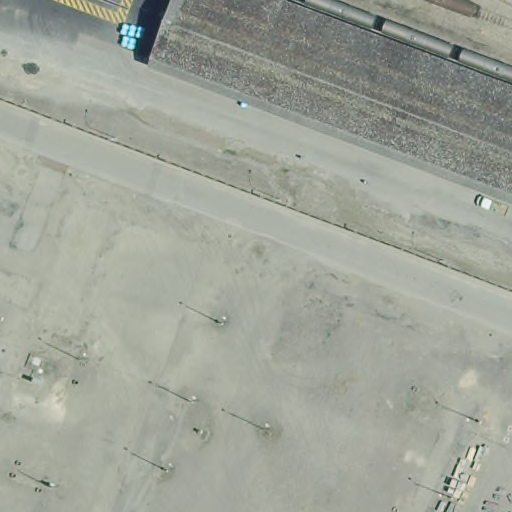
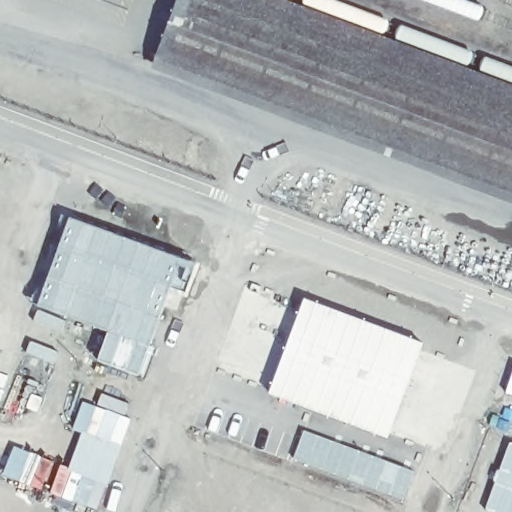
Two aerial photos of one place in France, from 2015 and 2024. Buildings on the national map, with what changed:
unchanged [(178,0),(241,0),(512,100),(512,182),(296,101),(211,69),(160,50),(178,0)]
new [(38,306),(35,305),(68,214),(194,261),(183,291),(171,286),(141,376),(95,359),(106,331),(67,316),(60,332),(32,320),(38,306)]
new [(304,297),(423,342),(385,437),(269,392),(304,297)]
new [(512,394),(504,391),(512,368),(512,394)]
new [(81,400),(95,405),(101,391),(130,401),(124,415),(131,418),(121,445),(80,431),(70,428),(81,400)]
new [(415,470),(404,499),(291,458),(301,429),(415,470)]
new [(80,431),(121,445),(107,484),(67,466),(80,431)]
new [(509,440),(512,441),(512,512),(495,512),(484,508),(494,474),(509,440)]
new [(13,445),(54,462),(43,490),(1,473),(13,445)]
new [(59,463),(67,466),(107,484),(96,510),(47,492),(59,463)]

